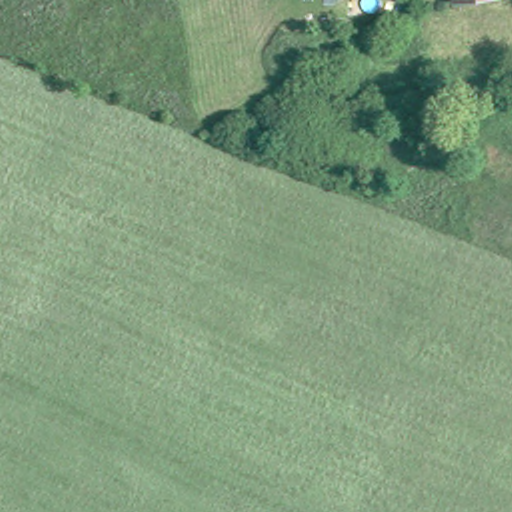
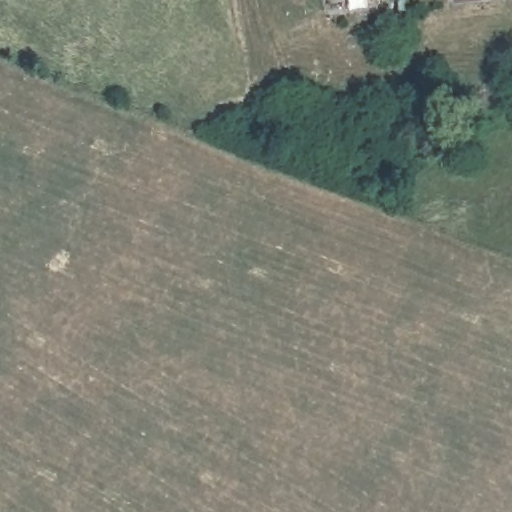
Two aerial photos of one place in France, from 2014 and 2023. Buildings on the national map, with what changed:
unchanged [(460,0),(463,0),(461,1),(460,0)]

